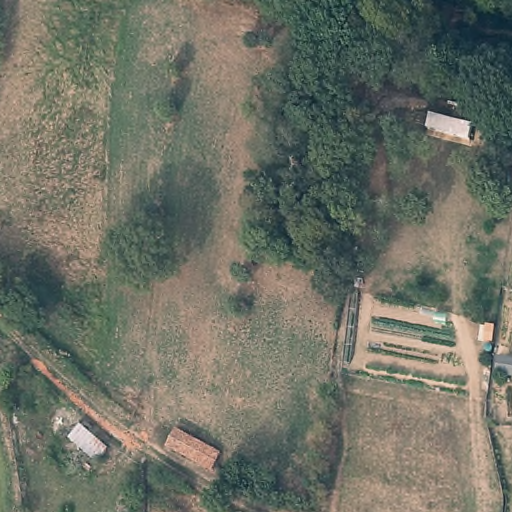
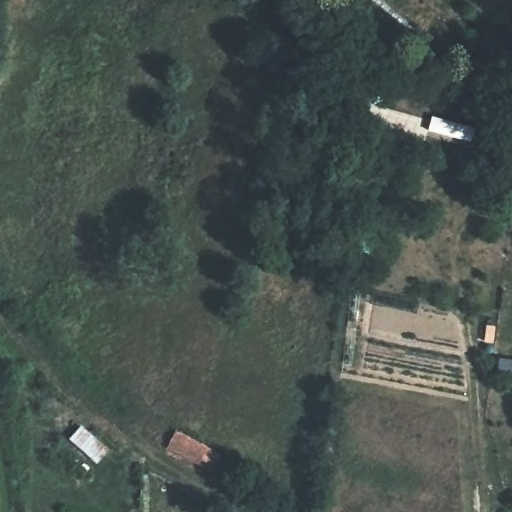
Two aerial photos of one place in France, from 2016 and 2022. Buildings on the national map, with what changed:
unchanged [(222,452),(214,472),(166,445),(177,428),(222,452)]

